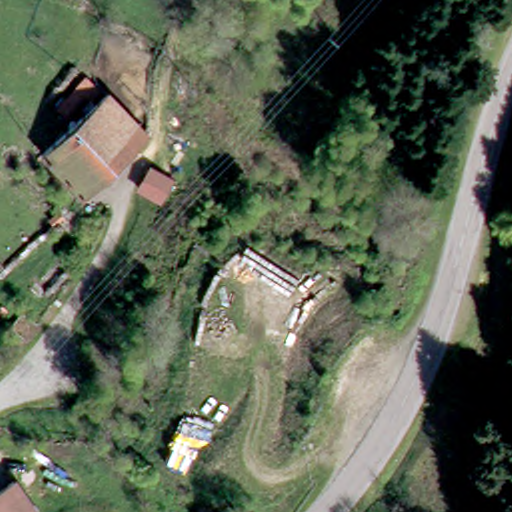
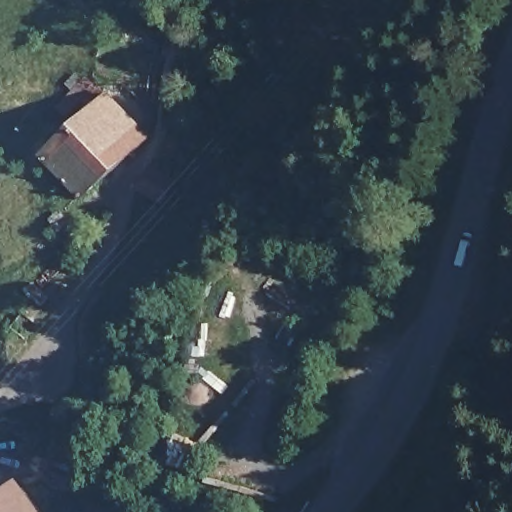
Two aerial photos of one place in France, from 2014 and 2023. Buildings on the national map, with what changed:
unchanged [(147,138),(85,200),(43,158),(105,95),(147,138)]
unchanged [(162,203),(139,189),(154,165),(177,180),(162,203)]
unchanged [(71,223),(59,236),(49,227),(61,214),(71,223)]
unchanged [(48,512),(0,512),(0,482),(17,470),(48,512)]

